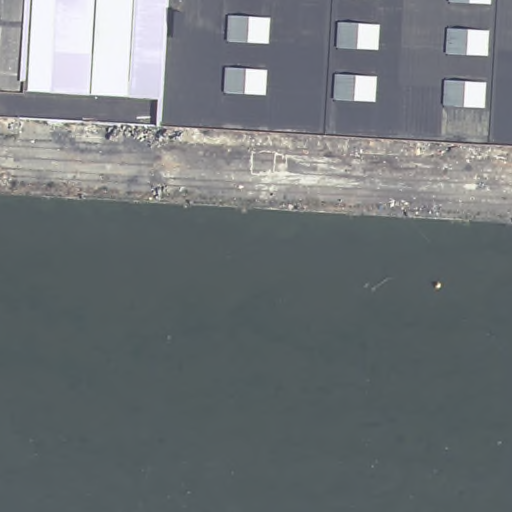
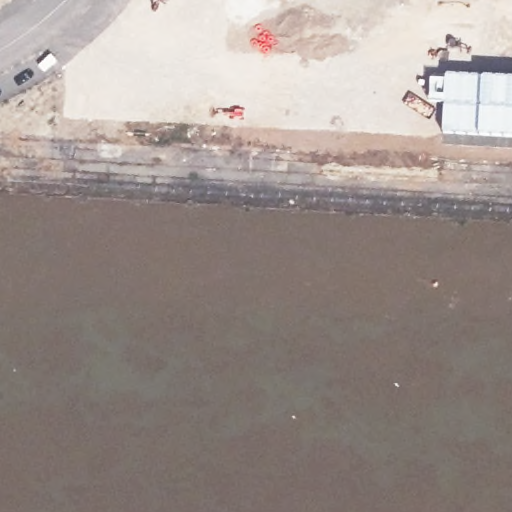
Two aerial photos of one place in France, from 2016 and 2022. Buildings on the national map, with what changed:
demolished [(158,123),(20,115),(0,113),(0,0),(512,0),(512,143),(158,123)]

